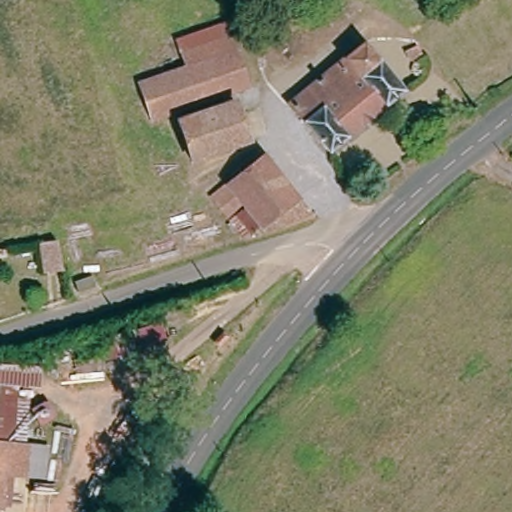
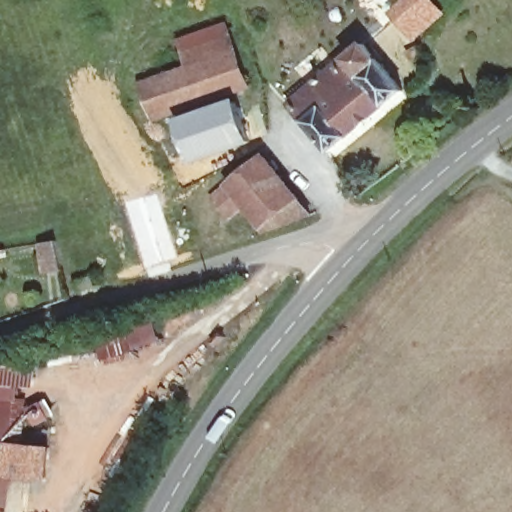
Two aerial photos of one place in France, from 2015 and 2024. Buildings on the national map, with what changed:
new [(413,42),(388,12),(403,0),(435,0),(446,14),(413,42)]
unchanged [(229,24),(237,54),(185,69),(176,38),(229,24)]
unchanged [(397,93),(324,152),(286,103),(361,46),(368,55),(397,93)]
unchanged [(153,118),(144,80),(185,69),(237,54),(248,90),(153,118)]
unchanged [(468,113),(462,102),(475,93),(483,103),(468,113)]
unchanged [(235,103),(244,144),(191,157),(181,118),(235,103)]
unchanged [(271,235),(248,204),(226,219),(214,198),(267,164),(315,221),(271,235)]
unchanged [(37,272),(30,240),(48,236),(57,268),(37,272)]
unchanged [(172,244),(175,253),(164,257),(161,249),(172,244)]
unchanged [(111,363),(75,376),(51,380),(48,364),(70,358),(102,354),(100,343),(157,323),(165,344),(111,363)]
unchanged [(7,399),(21,401),(21,445),(0,444),(0,382),(7,382),(7,399)]
unchanged [(21,445),(31,446),(43,446),(44,477),(30,477),(5,476),(5,512),(0,512),(0,444),(21,445)]

